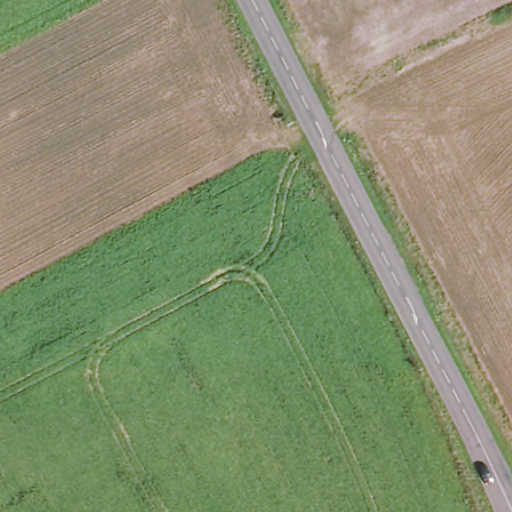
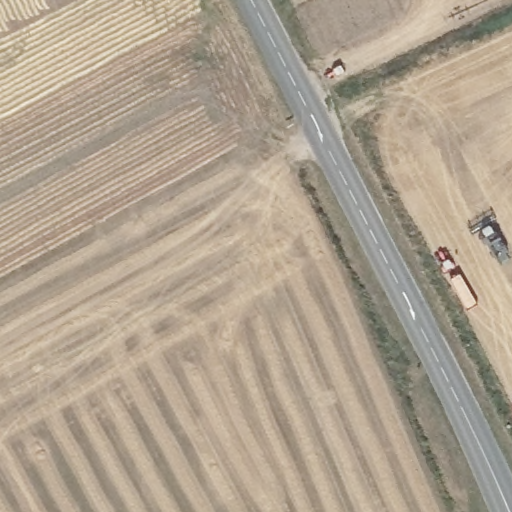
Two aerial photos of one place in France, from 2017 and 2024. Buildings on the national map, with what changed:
[]

